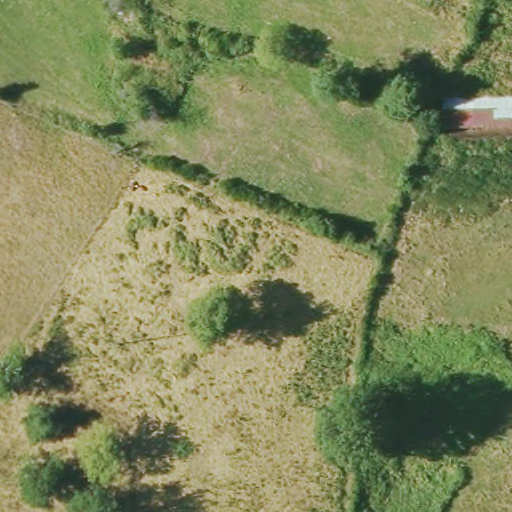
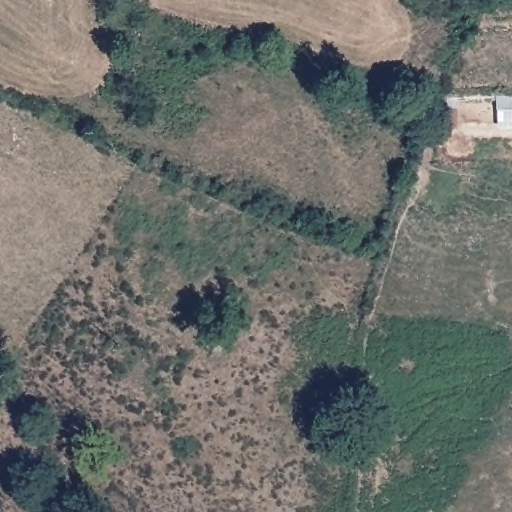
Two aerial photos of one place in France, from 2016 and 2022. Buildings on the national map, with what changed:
unchanged [(512,124),(442,126),(442,104),(441,98),(445,98),(512,95),(512,124)]
unchanged [(137,179),(138,168),(166,173),(164,184),(137,179)]

